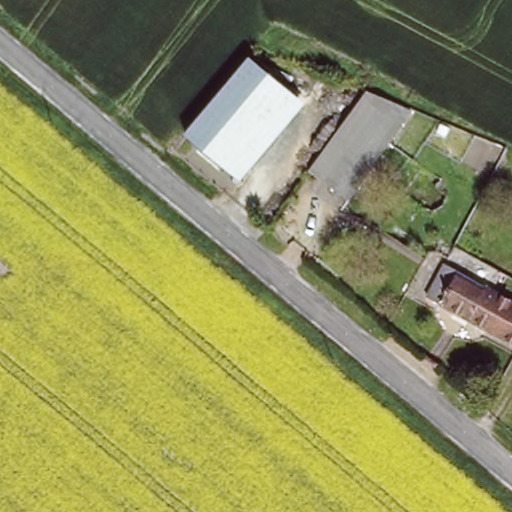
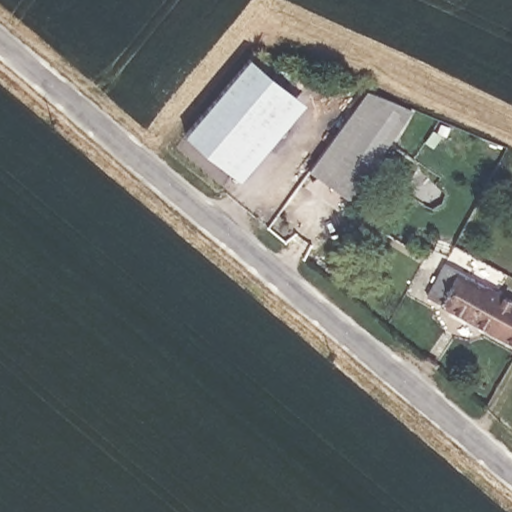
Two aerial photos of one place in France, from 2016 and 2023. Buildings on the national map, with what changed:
unchanged [(290,95),(304,106),(240,181),(228,170),(186,136),(248,60),(290,95)]
unchanged [(409,105),(345,194),(307,166),(365,86),(409,105)]
unchanged [(446,265),(512,302),(512,344),(428,296),(446,265)]

